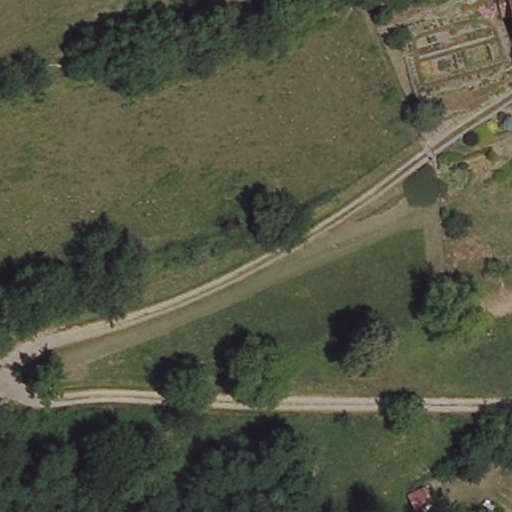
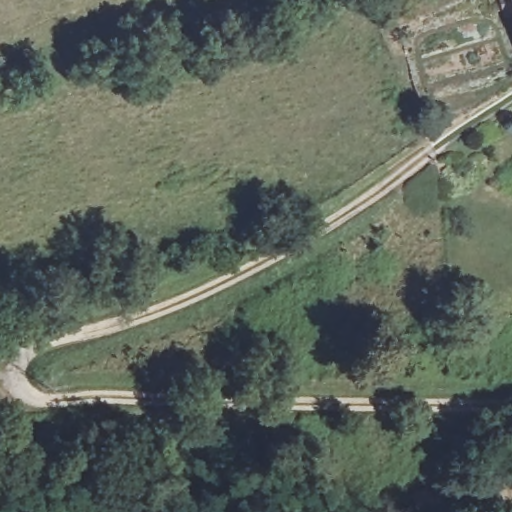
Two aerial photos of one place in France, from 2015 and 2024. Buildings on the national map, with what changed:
unchanged [(510,13),(508,2),(512,1),(512,13),(510,13)]
unchanged [(432,502),(418,510),(412,495),(425,488),(432,502)]

